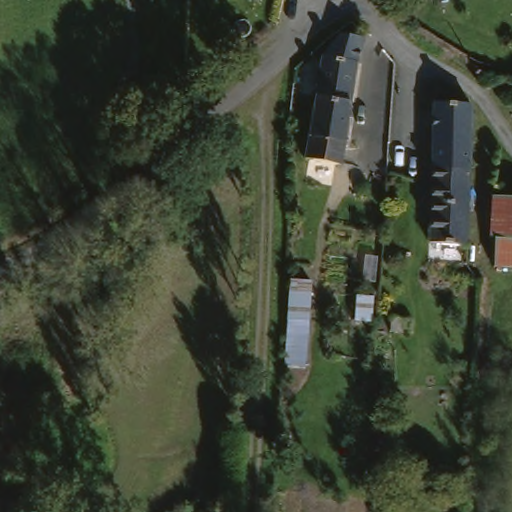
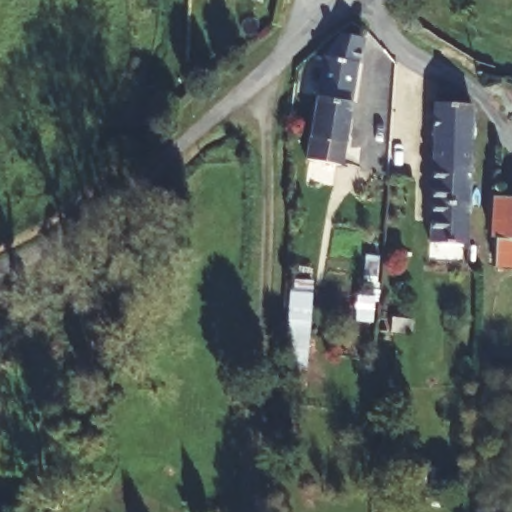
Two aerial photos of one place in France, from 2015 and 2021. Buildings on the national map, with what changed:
unchanged [(333,34),(356,37),(353,53),(350,82),(349,101),(308,96),(312,57),(333,34)]
unchanged [(349,101),(345,166),(303,163),(308,96),(349,101)]
unchanged [(430,106),(473,108),(468,249),(425,246),(430,106)]
unchanged [(512,197),(512,238),(491,236),(492,196),(512,197)]
unchanged [(512,238),(512,268),(490,267),(491,242),(491,236),(512,238)]
unchanged [(291,285),(310,285),(308,323),(290,323),(291,285)]

